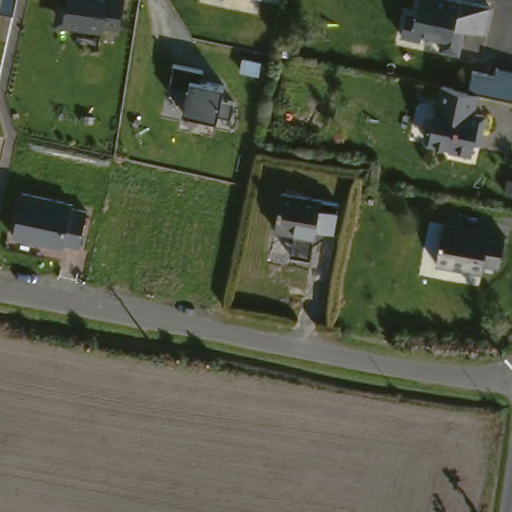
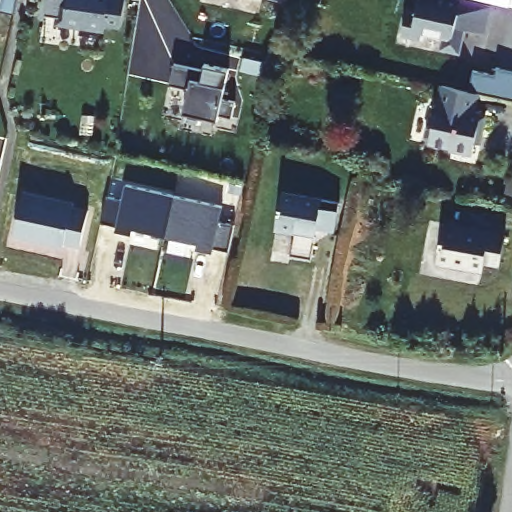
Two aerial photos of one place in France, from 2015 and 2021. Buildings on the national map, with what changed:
unchanged [(0,10),(0,0),(15,0),(12,13),(0,10)]
unchanged [(62,0),(126,0),(122,29),(109,27),(106,35),(63,25),(67,1),(62,0)]
unchanged [(420,0),(468,0),(494,5),(488,35),(456,27),(468,33),(463,54),(436,45),(436,35),(425,32),(422,41),(403,35),(407,8),(416,12),(420,0)]
unchanged [(174,65),(205,70),(203,80),(227,85),(225,101),(237,104),(234,119),(223,116),(222,121),(185,115),(187,92),(171,85),(174,65)]
unchanged [(473,72),(495,76),(496,70),(512,73),(512,101),(482,95),(469,92),(473,72)]
unchanged [(440,111),(434,107),(440,85),(482,95),(478,111),(489,115),(473,155),(432,142),(440,111)]
unchanged [(288,185),(346,197),(340,225),(326,222),(324,231),(303,226),(301,233),(279,228),(288,185)]
new [(107,196),(122,201),(125,186),(221,205),(218,220),(233,223),(228,250),(216,247),(215,253),(195,249),(196,242),(133,229),(132,236),(116,231),(117,225),(102,222),(107,196)]
unchanged [(26,196),(77,207),(77,212),(88,215),(81,247),(71,244),(67,248),(16,237),(26,196)]
unchanged [(511,260),(499,260),(497,267),(448,260),(455,220),(512,230),(512,256),(511,260)]

